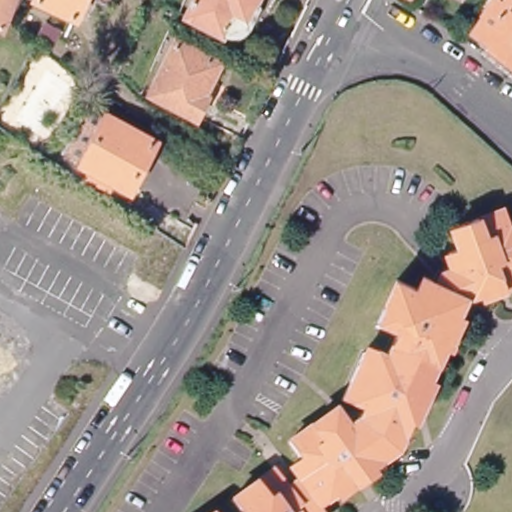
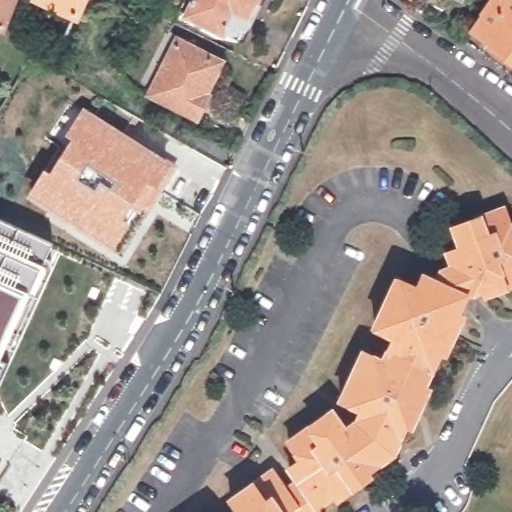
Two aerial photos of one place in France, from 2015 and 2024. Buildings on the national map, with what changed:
unchanged [(9,14),(5,23),(0,20),(0,0),(20,0),(14,16),(9,14)]
unchanged [(40,0),(83,0),(76,17),(40,0)]
unchanged [(225,25),(221,34),(182,15),(189,0),(255,0),(240,32),(225,25)]
unchanged [(466,0),(464,3),(460,0),(466,0)]
unchanged [(490,46),(492,44),(476,33),(488,15),(486,13),(495,0),(506,8),(511,0),(512,0),(512,62),(507,59),(490,46)]
unchanged [(155,89),(179,39),(213,56),(198,88),(210,93),(201,112),(155,89)]
new [(44,168),(49,170),(70,139),(64,135),(83,105),(177,165),(148,214),(137,208),(115,249),(27,194),(44,168)]
demolished [(166,153),(142,198),(126,189),(121,198),(107,190),(112,182),(75,162),(101,113),(114,119),(112,124),(120,128),(166,153)]
unchanged [(234,497),(276,467),(287,482),(299,473),(292,462),(303,453),(292,436),(331,409),(343,423),(354,415),(360,404),(341,393),(363,352),(382,362),(397,336),(377,325),(401,282),(421,292),(428,279),(440,284),(448,270),(459,267),(454,248),(466,244),(461,225),(508,209),(512,221),(512,288),(486,295),(483,289),(466,294),(452,317),(457,319),(438,354),(433,351),(412,388),(420,391),(401,424),(394,421),(380,447),(352,468),(357,474),(327,497),(323,492),(303,506),(307,512),(243,512),(234,497)]
new [(40,267),(26,293),(0,356),(0,218),(50,242),(40,267)]
demolished [(0,375),(0,352),(12,361),(0,375)]

